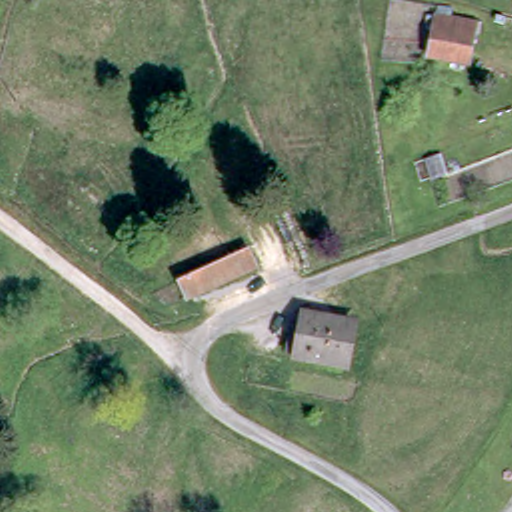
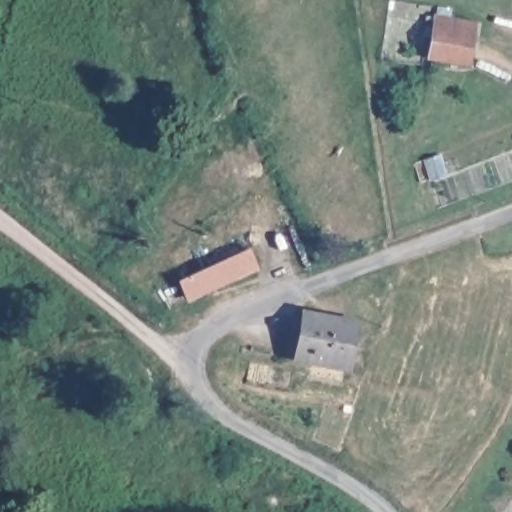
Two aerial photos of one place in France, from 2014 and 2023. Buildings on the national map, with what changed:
unchanged [(465,73),(429,68),(434,26),(470,31),(465,73)]
unchanged [(186,278),(254,252),(260,267),(192,294),(186,278)]
unchanged [(345,377),(287,363),(292,343),(305,346),(312,320),(357,333),(345,377)]

